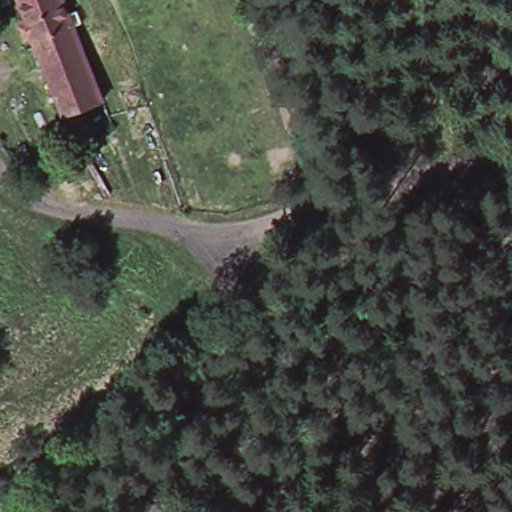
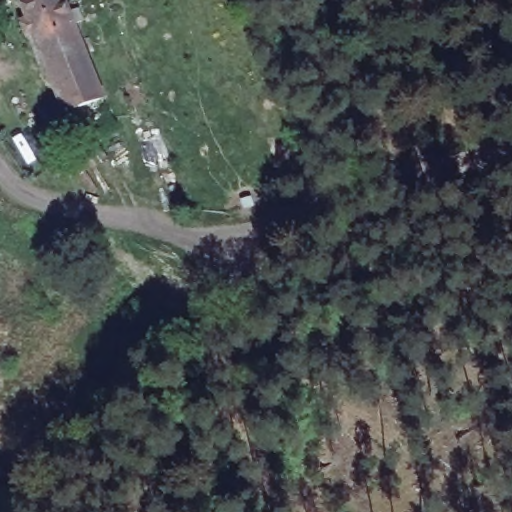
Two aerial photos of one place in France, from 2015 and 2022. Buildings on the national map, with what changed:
unchanged [(43,64),(19,0),(64,0),(83,49),(43,64)]
unchanged [(102,98),(62,114),(43,64),(83,49),(102,98)]

